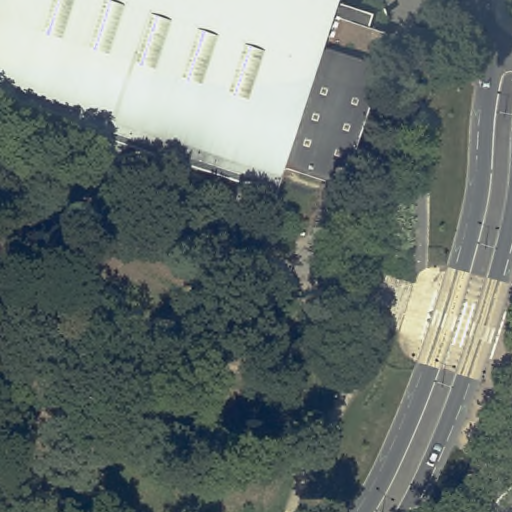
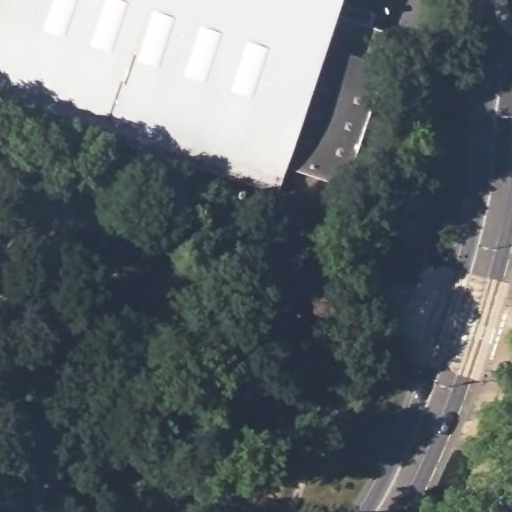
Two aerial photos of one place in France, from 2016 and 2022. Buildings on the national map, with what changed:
unchanged [(337,15),(342,17),(347,2),(377,12),(373,27),(377,28),(390,32),(380,64),(388,67),(350,186),(328,179),(285,165),(276,195),(0,103),(0,0),(292,0),(337,15)]
unchanged [(337,15),(292,0),(342,0),(337,15)]

